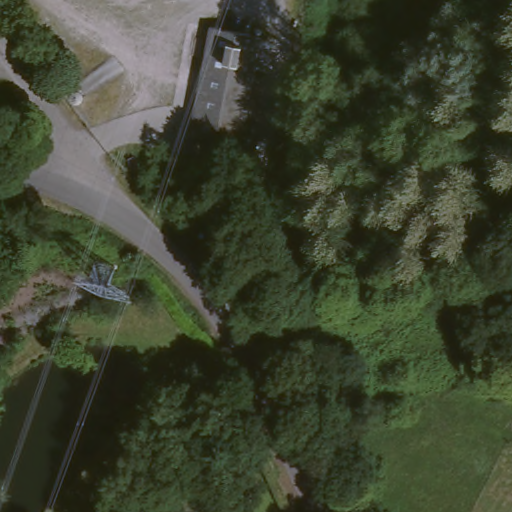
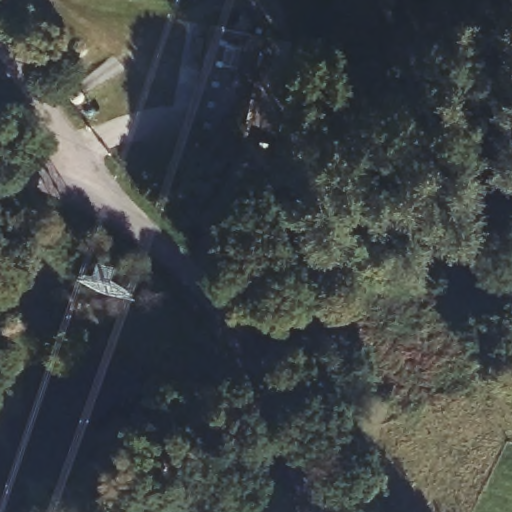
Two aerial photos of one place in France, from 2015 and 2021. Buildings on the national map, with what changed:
unchanged [(211,27),(261,36),(239,146),(191,135),(211,27)]

